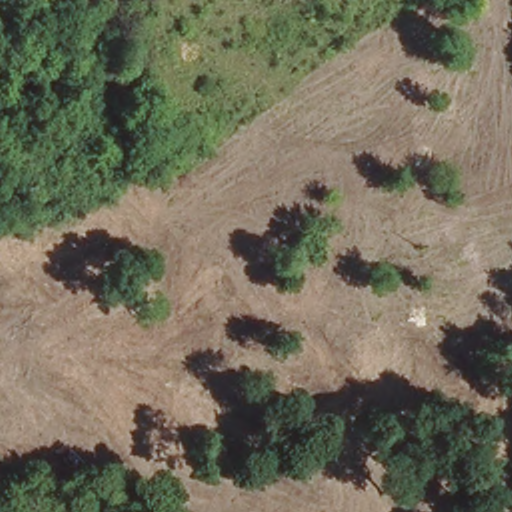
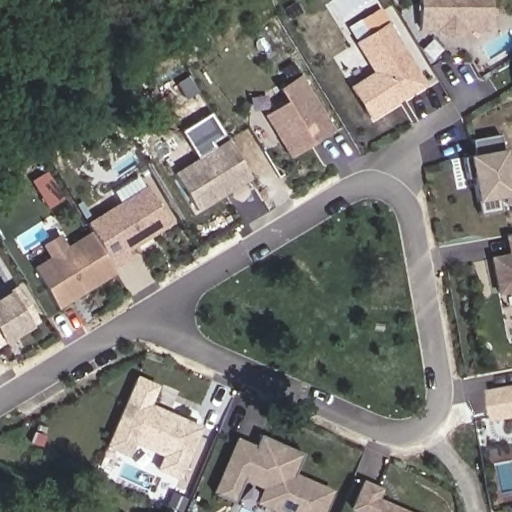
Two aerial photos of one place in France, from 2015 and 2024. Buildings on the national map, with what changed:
new [(467,30),(462,36),(441,36),(438,30),(418,30),(418,0),(491,0),(491,30),(467,30)]
new [(368,120),(347,87),(372,70),(355,42),(388,22),(426,85),(368,120)]
new [(289,157),(264,115),(284,101),(277,89),(300,75),(334,130),(289,157)]
new [(473,140),(502,135),(505,149),(512,190),(512,196),(499,198),(501,210),(480,214),(475,201),(467,155),(476,154),(473,140)]
new [(197,212),(173,172),(227,139),(251,179),(197,212)]
new [(127,252),(131,257),(113,269),(90,232),(85,223),(146,186),(171,225),(127,252)]
new [(58,310),(31,267),(49,256),(41,245),(58,234),(66,246),(90,231),(90,232),(113,269),(117,274),(58,310)]
new [(490,256),(508,254),(505,236),(512,235),(512,292),(497,295),(490,256)]
new [(0,346),(0,295),(16,285),(39,322),(0,346)]
new [(104,446),(136,375),(159,386),(151,405),(202,426),(180,480),(156,470),(162,457),(134,445),(128,456),(104,446)]
new [(489,390),(512,386),(512,419),(495,422),(489,390)]
new [(261,488),(242,480),(233,500),(212,491),(235,436),(255,445),(259,436),(303,455),(294,473),(334,490),(325,512),(276,512),(255,503),(261,488)]
new [(363,480),(384,490),(380,498),(411,512),(355,512),(350,510),(363,480)]

